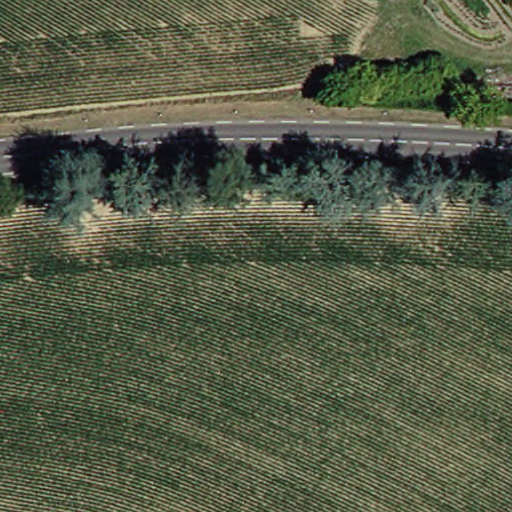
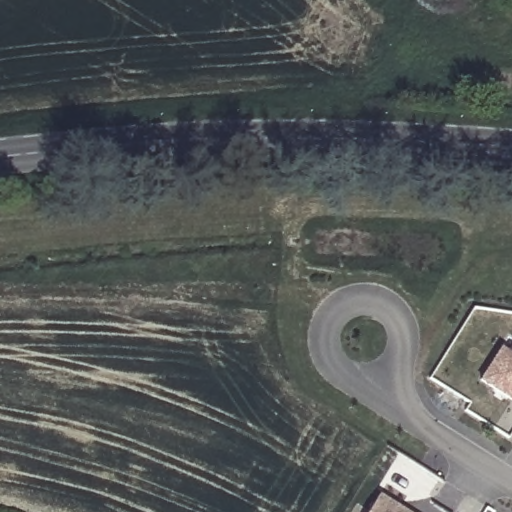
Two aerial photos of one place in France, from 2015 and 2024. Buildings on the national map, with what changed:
new [(480,380),(509,335),(512,338),(512,399),(512,400),(480,380)]
new [(400,512),(361,512),(372,494),(400,512)]

